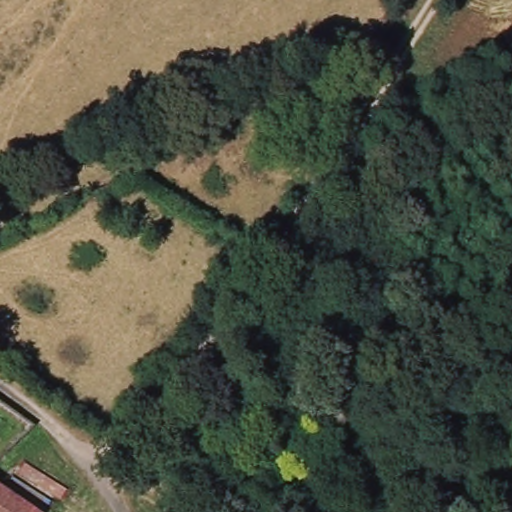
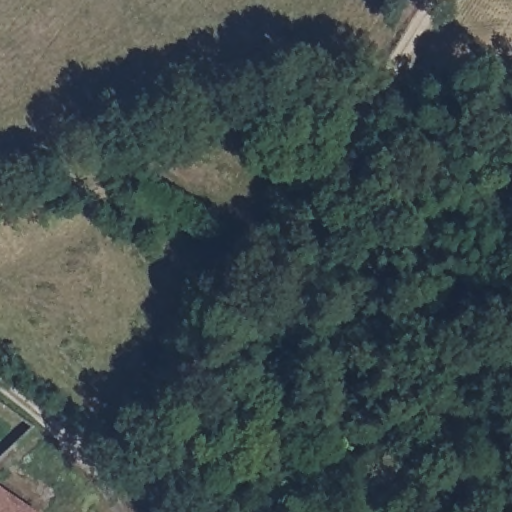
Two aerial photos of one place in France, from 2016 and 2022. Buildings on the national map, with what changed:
unchanged [(41,510),(39,512),(0,512),(0,483),(41,510)]

